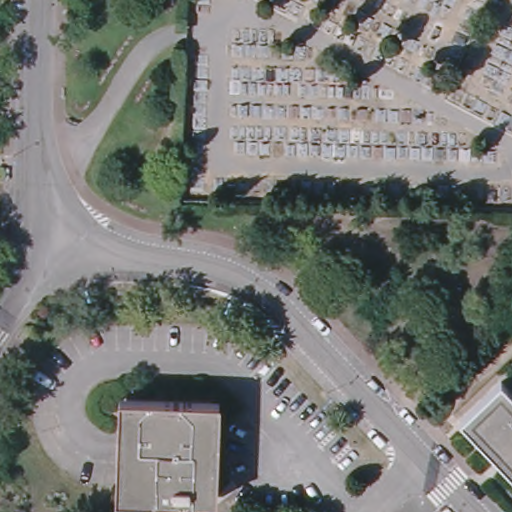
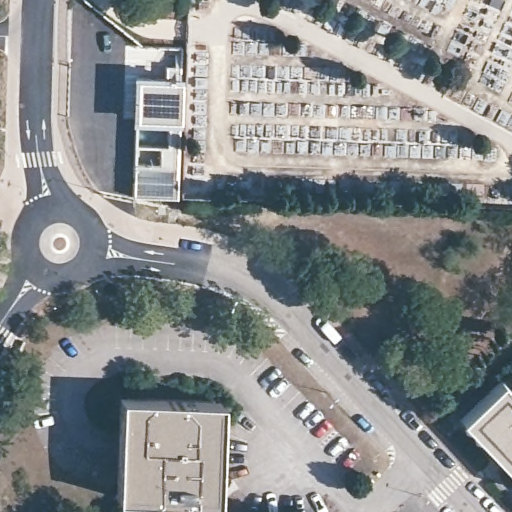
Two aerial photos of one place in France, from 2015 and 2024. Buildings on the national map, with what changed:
new [(133,138),(132,75),(164,76),(164,66),(179,66),(180,156),(178,200),(132,197),(133,138)]
unchanged [(461,418),(468,412),(504,378),(512,386),(512,471),(481,439),(461,418)]
unchanged [(120,469),(120,452),(120,434),(121,417),(122,400),(132,400),(214,402),(222,402),(222,420),(221,437),(221,454),(221,471),(220,490),(219,506),(212,505),(190,505),(190,509),(164,508),(164,504),(129,503),(119,503),(119,487),(120,469)]

